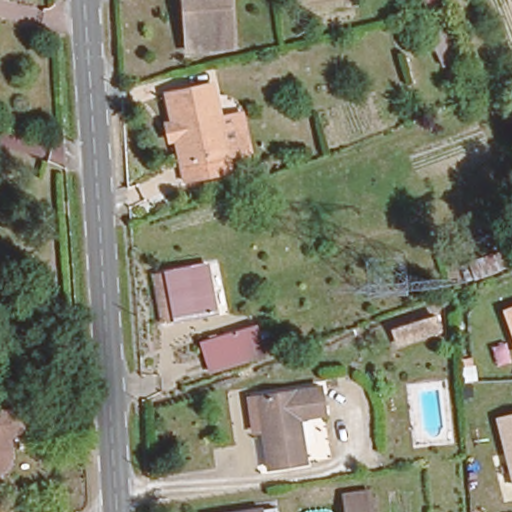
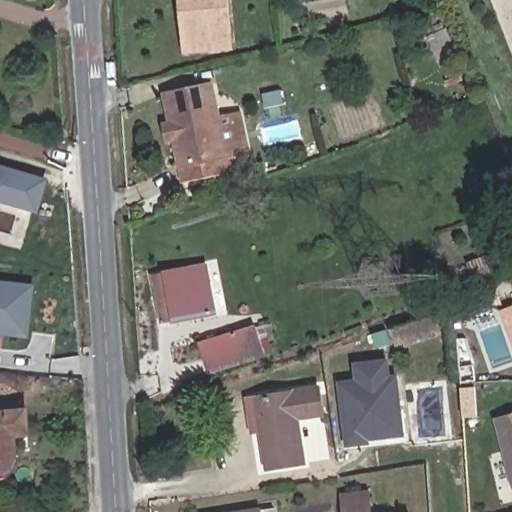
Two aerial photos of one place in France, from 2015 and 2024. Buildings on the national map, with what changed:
unchanged [(231,46),(190,49),(185,0),(227,0),(231,46)]
unchanged [(431,16),(428,0),(447,0),(452,11),(431,16)]
unchanged [(449,64),(436,35),(447,31),(459,60),(449,64)]
unchanged [(239,142),(223,146),(226,165),(179,174),(163,89),(210,81),(218,120),(234,116),(239,142)]
new [(35,213),(0,203),(0,165),(45,177),(35,213)]
unchanged [(472,282),(466,262),(492,254),(506,250),(511,265),(497,270),(498,275),(472,282)]
unchanged [(162,325),(154,275),(209,265),(219,315),(162,325)]
new [(30,285),(24,337),(0,335),(0,281),(30,285)]
unchanged [(512,306),(512,332),(503,310),(512,306)]
new [(434,315),(440,331),(417,339),(394,347),(389,330),(412,322),(434,315)]
unchanged [(217,370),(208,340),(260,322),(270,350),(217,370)]
new [(391,375),(397,375),(405,436),(370,441),(370,445),(347,448),(340,380),(356,380),(354,362),(388,357),(391,375)]
unchanged [(304,457),(266,463),(255,391),(319,383),(322,409),(298,413),(304,457)]
unchanged [(14,406),(15,425),(2,425),(3,452),(3,453),(3,454),(3,455),(3,456),(2,457),(1,458),(0,459),(0,407),(14,406)]
unchanged [(512,414),(512,476),(496,418),(512,414)]
unchanged [(350,512),(349,493),(368,491),(369,512),(350,512)]
unchanged [(263,512),(216,512),(263,508),(263,512)]

